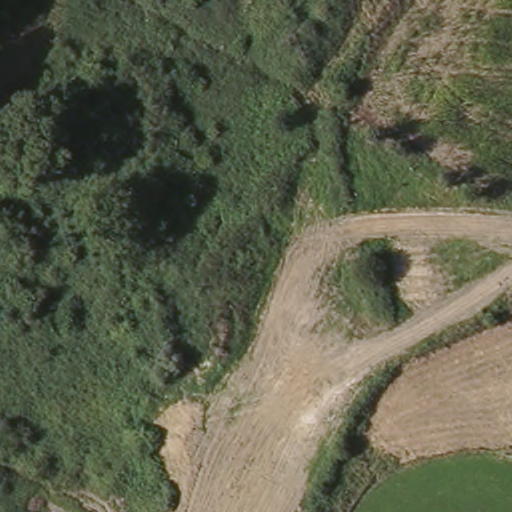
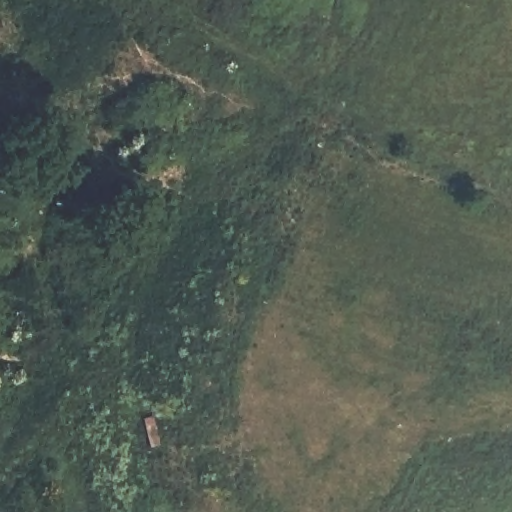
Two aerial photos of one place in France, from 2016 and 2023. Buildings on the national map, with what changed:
[]

